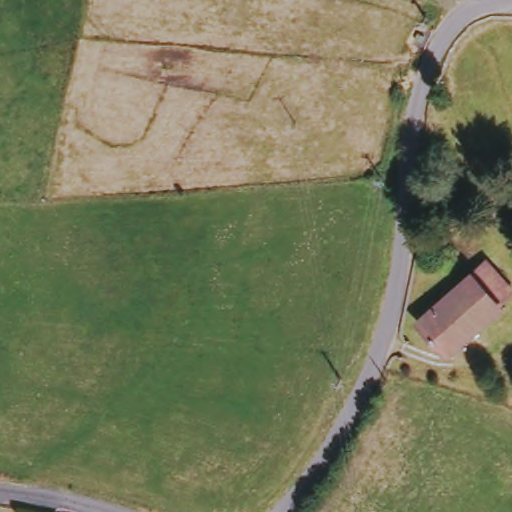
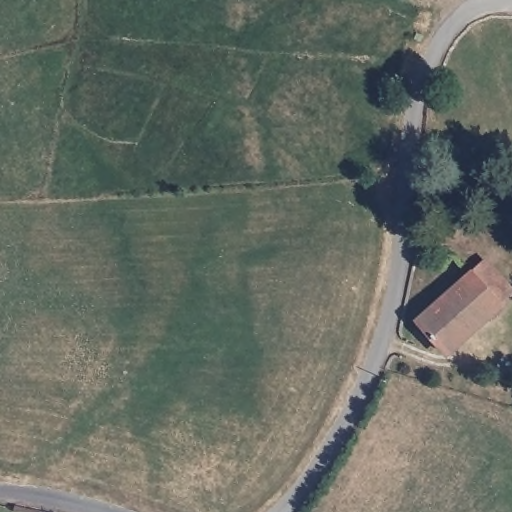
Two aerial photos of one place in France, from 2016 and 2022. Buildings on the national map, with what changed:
unchanged [(481,271),(504,297),(492,309),(495,313),(441,361),(413,331),(460,287),(465,282),(481,271)]

